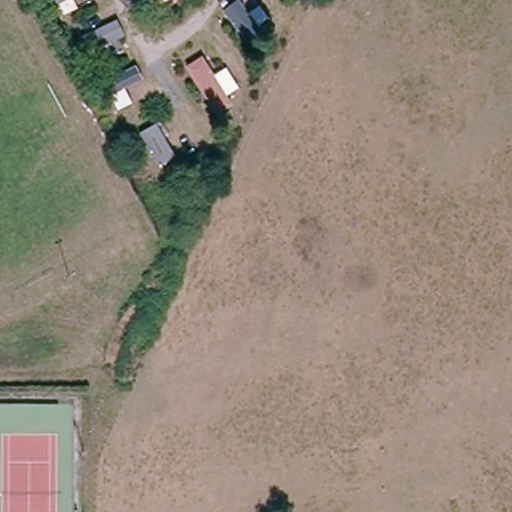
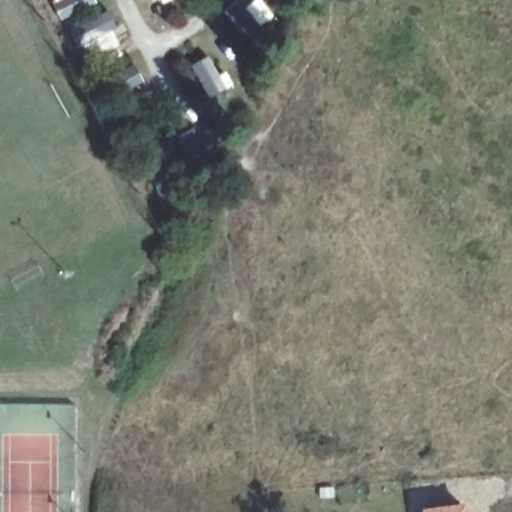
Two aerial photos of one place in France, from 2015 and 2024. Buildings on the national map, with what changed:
unchanged [(231,106),(217,115),(188,72),(202,63),(231,106)]
new [(465,500),(467,512),(420,512),(419,507),(465,500)]

